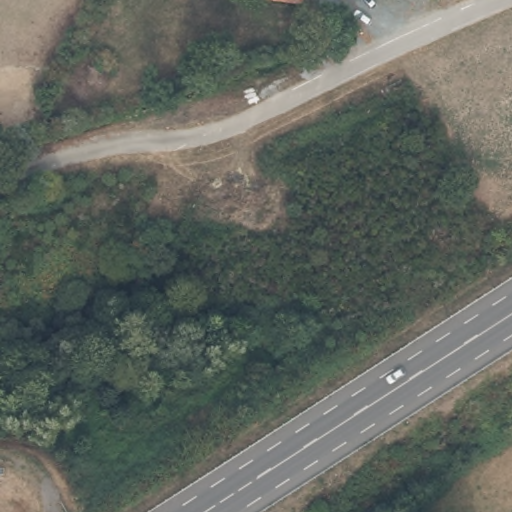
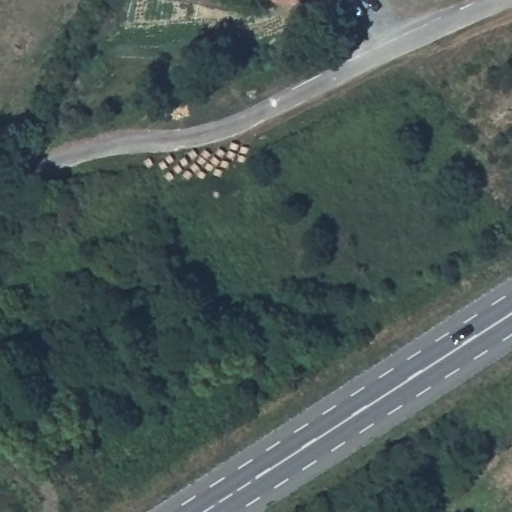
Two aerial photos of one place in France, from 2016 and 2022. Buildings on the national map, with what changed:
unchanged [(302,17),(257,7),(258,0),(305,0),(302,17)]

